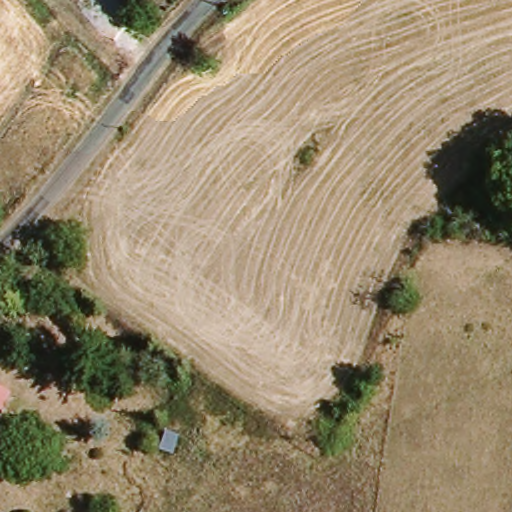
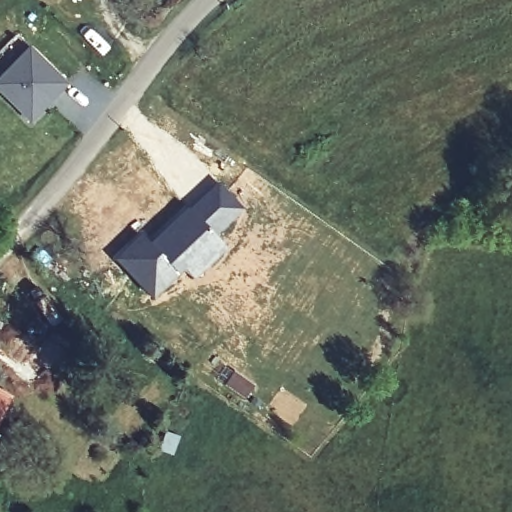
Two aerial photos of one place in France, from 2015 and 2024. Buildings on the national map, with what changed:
new [(0,96),(0,78),(30,45),(69,85),(31,126),(0,96)]
new [(176,215),(219,180),(245,209),(217,237),(227,247),(191,282),(183,273),(179,277),(149,240),(176,215)]
new [(140,231),(149,240),(179,277),(153,301),(111,258),(140,231)]
unchanged [(0,416),(0,396),(9,402),(0,416)]

